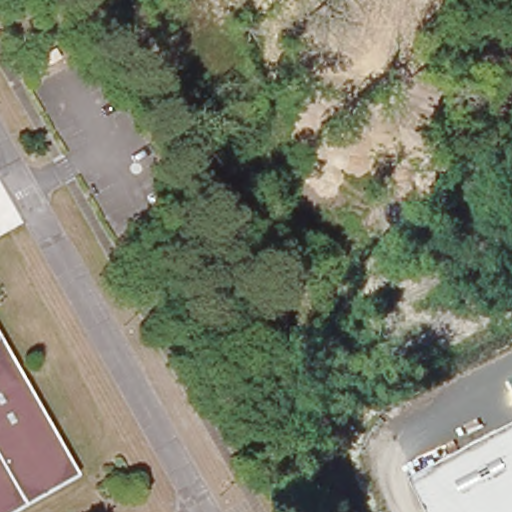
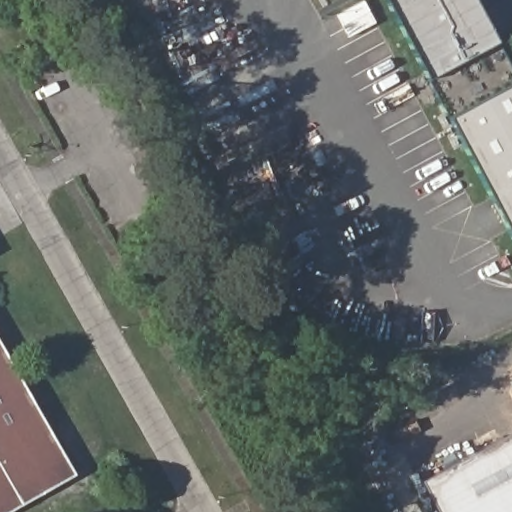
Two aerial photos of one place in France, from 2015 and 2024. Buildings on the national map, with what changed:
new [(453,121),(389,0),(478,0),(512,63),(512,234),(453,121)]
unchanged [(0,510),(0,433),(5,430),(0,423),(0,303),(90,458),(0,510)]
unchanged [(0,433),(0,423),(5,430),(0,433)]
unchanged [(442,512),(422,475),(512,427),(512,512),(442,512)]

